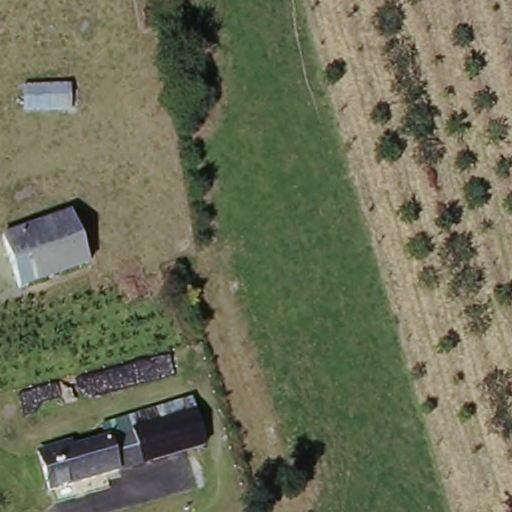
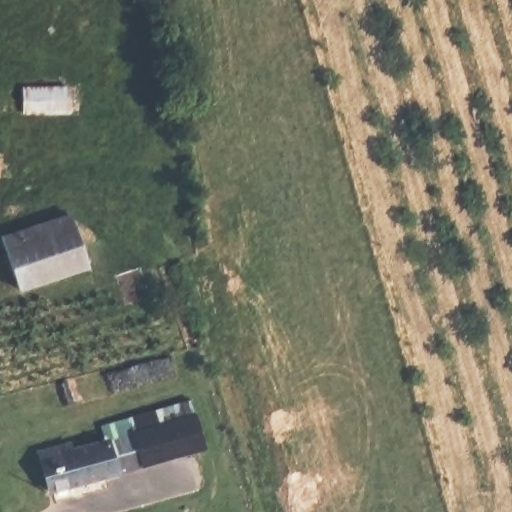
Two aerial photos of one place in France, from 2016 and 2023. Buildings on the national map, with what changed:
unchanged [(76,117),(23,119),(23,86),(73,87),(76,117)]
unchanged [(68,215),(77,239),(25,255),(18,232),(68,215)]
unchanged [(25,255),(77,239),(87,269),(17,293),(0,243),(0,238),(18,232),(25,255)]
unchanged [(196,413),(206,445),(173,455),(164,425),(196,413)]
unchanged [(173,455),(151,462),(118,480),(56,500),(42,457),(74,445),(77,456),(105,447),(138,433),(164,425),(173,455)]

